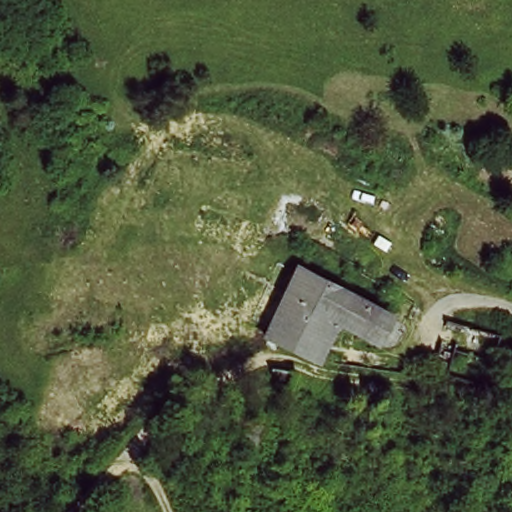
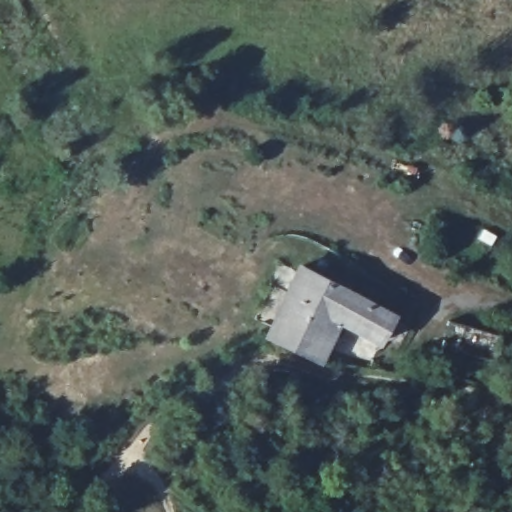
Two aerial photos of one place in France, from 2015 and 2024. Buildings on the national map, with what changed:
unchanged [(300,269),(354,298),(340,328),(323,364),(292,351),(313,307),(288,295),(300,269)]
unchanged [(266,342),(288,295),(313,307),(292,351),(266,342)]
unchanged [(354,298),(393,318),(389,349),(340,328),(354,298)]
unchanged [(447,378),(460,324),(499,335),(490,388),(447,378)]
unchanged [(296,391),(275,387),(278,372),(298,376),(296,391)]

